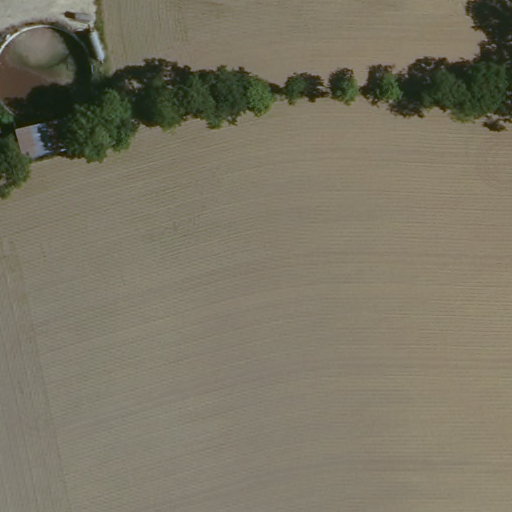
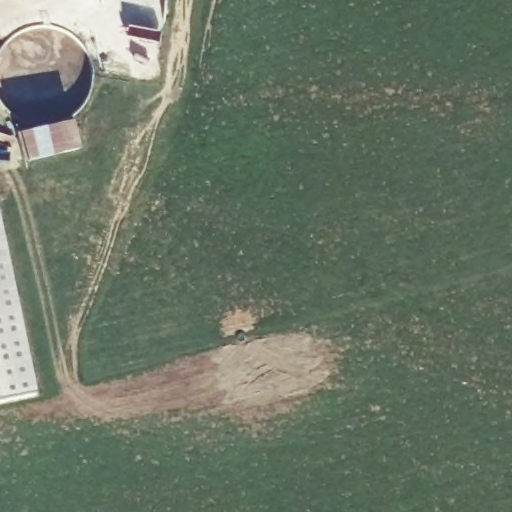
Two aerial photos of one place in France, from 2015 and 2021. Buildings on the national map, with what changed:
new [(17,137),(76,123),(82,151),(24,165),(17,137)]
new [(0,402),(0,218),(35,395),(0,402)]

